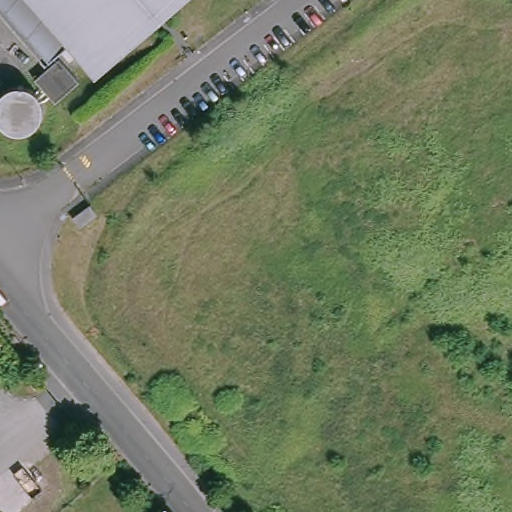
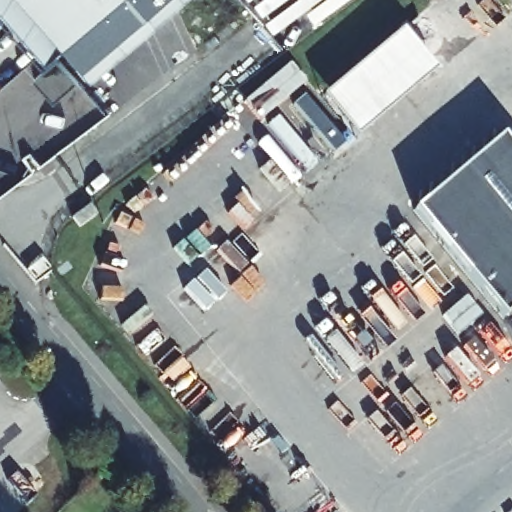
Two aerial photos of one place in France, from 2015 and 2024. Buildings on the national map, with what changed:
unchanged [(59,51),(14,0),(62,0),(87,29),(59,51)]
unchanged [(162,5),(160,7),(130,26),(99,42),(87,29),(62,0),(168,0),(162,5)]
new [(406,28),(440,68),(360,134),(327,94),(406,28)]
unchanged [(71,52),(92,76),(68,97),(47,73),(71,52)]
new [(339,150),(297,101),(308,92),(350,141),(339,150)]
new [(273,121),(282,114),(321,160),(312,168),(273,121)]
new [(512,134),(512,312),(510,314),(421,206),(510,131),(512,134)]
unchanged [(105,203),(90,214),(85,206),(100,195),(105,203)]

